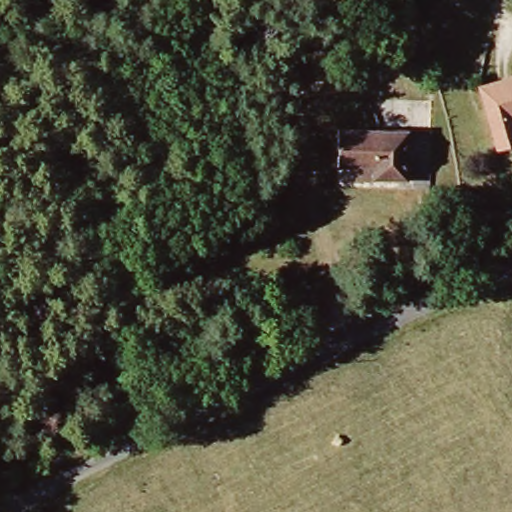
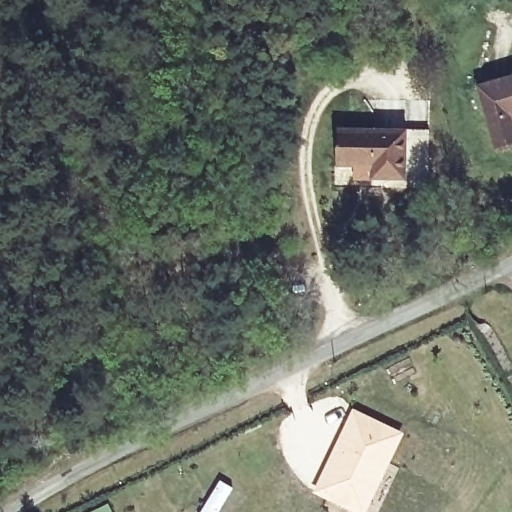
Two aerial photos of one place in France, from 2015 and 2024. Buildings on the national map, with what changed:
unchanged [(512,142),(490,147),(475,84),(512,75),(512,129),(509,129),(512,140),(512,142)]
unchanged [(344,158),(325,156),(328,120),(416,126),(412,183),(392,182),(392,174),(361,170),(342,169),(344,158)]
new [(352,406),(405,432),(365,512),(353,512),(311,490),(352,406)]
new [(220,478),(234,488),(218,512),(198,512),(220,478)]

